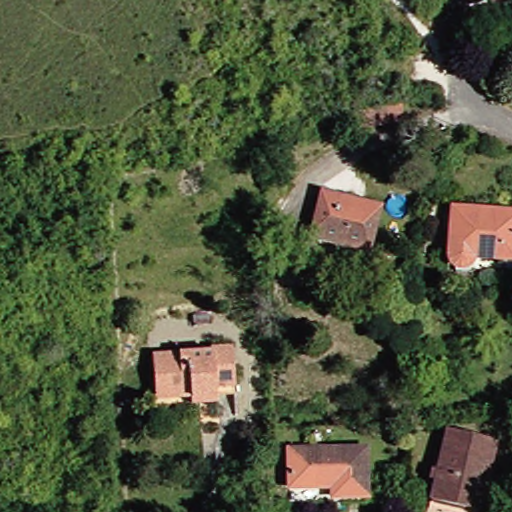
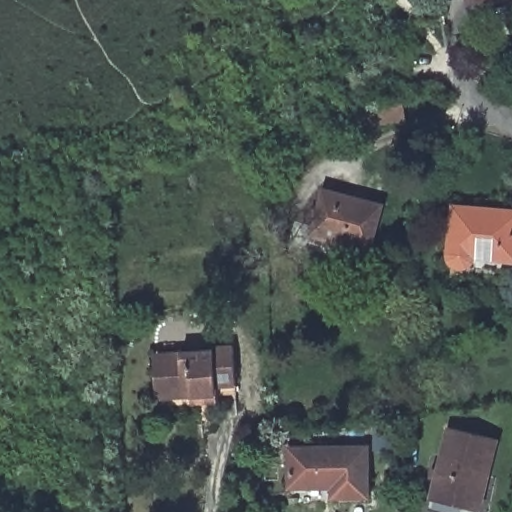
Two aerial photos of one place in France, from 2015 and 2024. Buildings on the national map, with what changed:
unchanged [(485,4),(463,9),(462,0),(485,0),(485,4)]
unchanged [(356,129),(353,111),(394,106),(396,124),(356,129)]
unchanged [(378,207),(366,255),(306,239),(319,192),(378,207)]
unchanged [(512,218),(512,251),(511,259),(469,256),(468,259),(467,261),(464,263),(462,265),(459,265),(456,265),(453,264),(451,262),(450,260),(449,257),(452,213),(512,218)]
unchanged [(190,407),(189,398),(167,400),(154,400),(151,371),(151,359),(228,352),(231,396),(215,397),(216,406),(190,407)]
unchanged [(493,443),(476,510),(427,498),(444,431),(493,443)]
unchanged [(363,499),(328,499),(328,489),(285,489),(284,449),(363,448),(363,499)]

